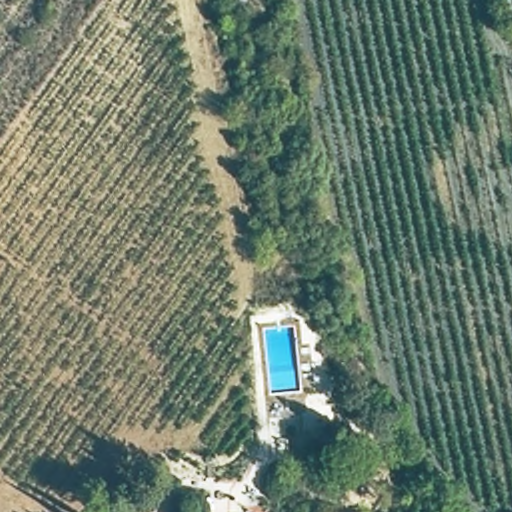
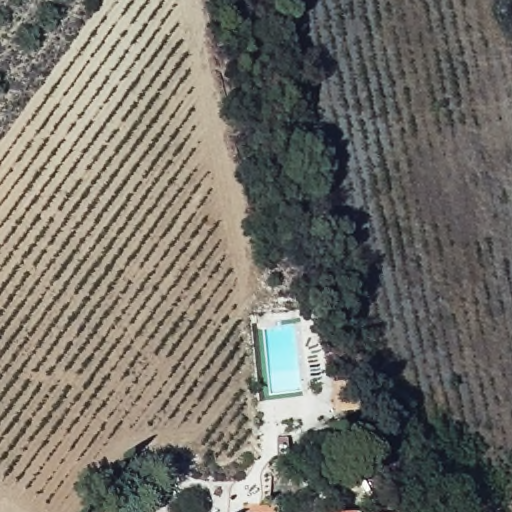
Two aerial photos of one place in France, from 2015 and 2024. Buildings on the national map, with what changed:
unchanged [(324,512),(325,505),(365,512),(324,512)]

